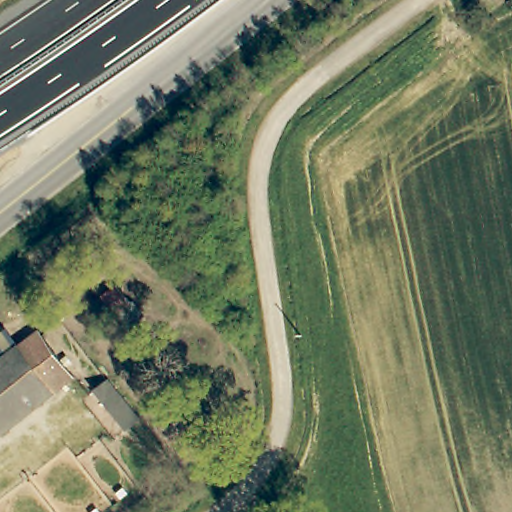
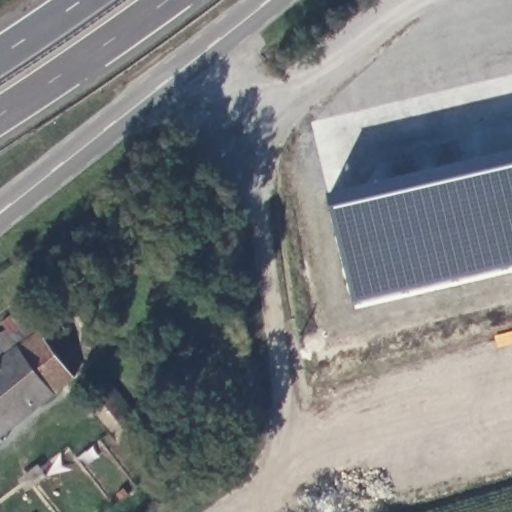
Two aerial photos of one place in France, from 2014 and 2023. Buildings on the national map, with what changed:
new [(512,154),(512,266),(349,304),(325,197),(512,154)]
unchanged [(0,368),(40,337),(75,380),(0,440),(0,368)]
unchanged [(106,386),(136,425),(124,435),(94,398),(106,386)]

